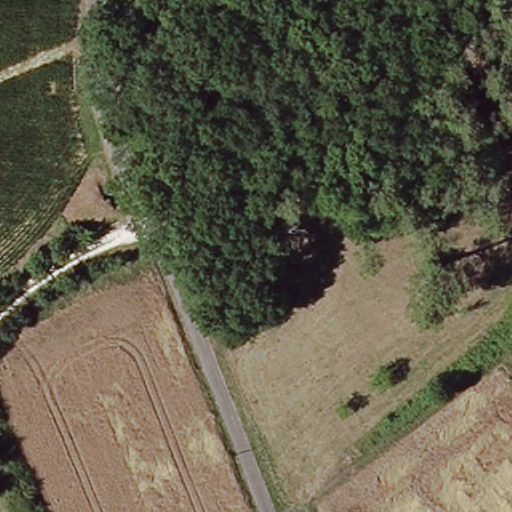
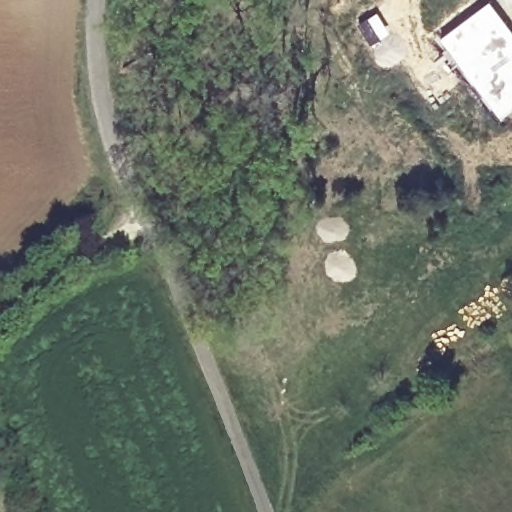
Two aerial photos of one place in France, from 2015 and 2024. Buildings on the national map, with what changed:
new [(491,0),(512,28),(512,109),(500,118),(437,38),(486,0),(491,0)]
new [(395,63),(379,65),(369,43),(357,23),(377,10),(390,29),(405,45),(395,63)]

